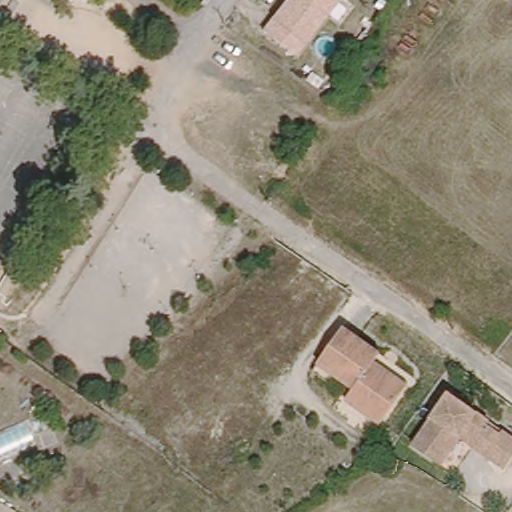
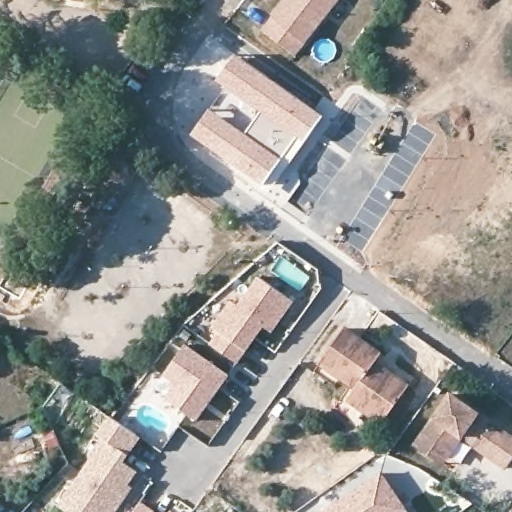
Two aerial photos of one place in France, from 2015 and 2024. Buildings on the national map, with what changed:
unchanged [(265,30),(287,0),(337,0),(296,53),(265,30)]
new [(210,105),(245,130),(257,112),(215,79),(234,52),(323,115),(289,164),(283,160),(263,186),(190,134),(210,105)]
new [(265,325),(237,361),(211,342),(219,331),(212,326),(232,299),(238,305),(258,277),(293,302),(273,330),(265,325)]
unchanged [(380,355),(413,380),(406,388),(378,424),(345,398),(354,387),(320,361),(345,328),(380,355)]
new [(166,398),(176,385),(164,376),(187,344),(229,375),(197,420),(166,398)]
unchanged [(434,462),(416,449),(452,398),(491,425),(489,429),(502,439),(505,435),(512,440),(512,466),(507,472),(474,448),(462,440),(442,468),(434,462)]
new [(92,463),(106,445),(101,441),(114,424),(144,445),(126,469),(140,479),(121,505),(125,507),(122,512),(60,512),(94,465),(92,463)]
new [(408,511),(407,512),(326,512),(383,473),(408,511)]
new [(155,511),(156,512),(133,512),(141,501),(155,511)]
new [(175,512),(171,512),(172,510),(175,512)]

